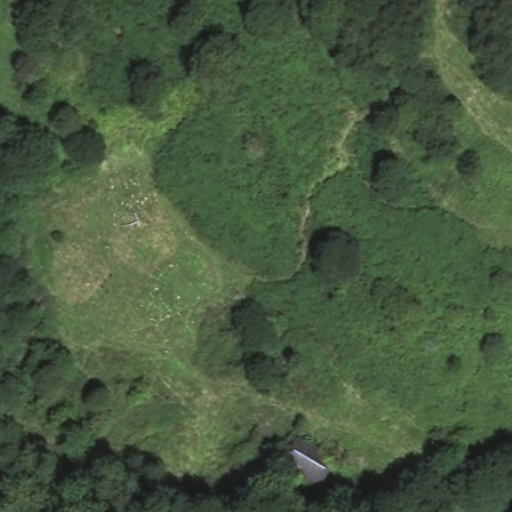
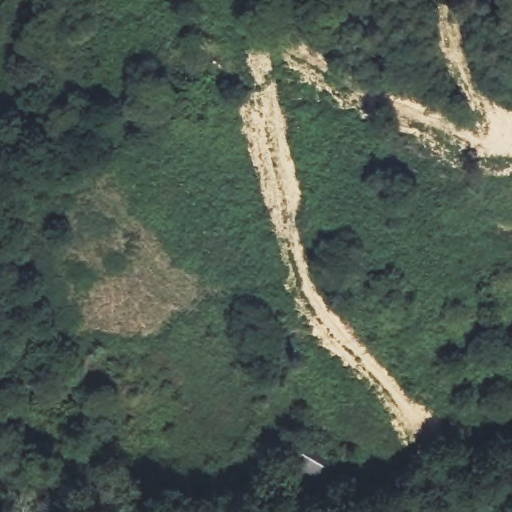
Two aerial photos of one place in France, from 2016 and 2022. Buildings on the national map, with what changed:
unchanged [(333,453),(314,481),(275,458),(296,428),(333,453)]

